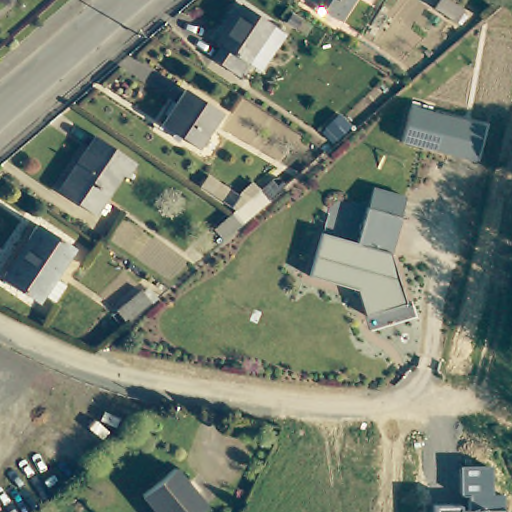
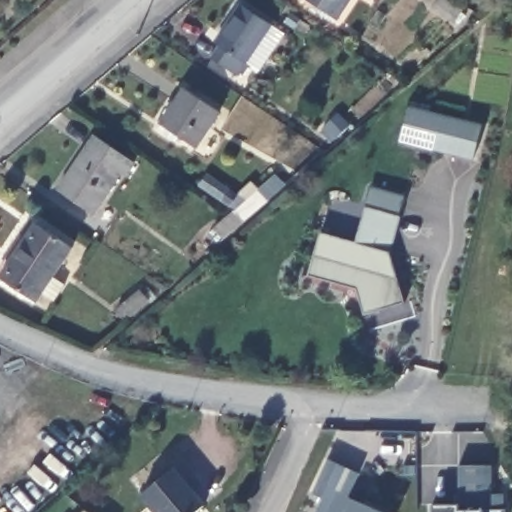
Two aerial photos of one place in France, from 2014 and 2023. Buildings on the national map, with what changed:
unchanged [(334,22),(300,0),(349,0),(334,22)]
unchanged [(427,12),(435,1),(456,15),(448,26),(427,12)]
unchanged [(210,63),(218,50),(214,47),(239,8),(268,27),(235,79),(210,63)]
unchanged [(160,130),(183,93),(219,117),(195,153),(160,130)]
unchanged [(476,122),(467,156),(394,137),(403,103),(476,122)]
unchanged [(134,166),(125,180),(121,177),(94,218),(55,193),(92,138),(134,166)]
unchanged [(360,203),(365,184),(399,193),(393,212),(383,248),(399,299),(359,311),(351,285),(303,272),(315,229),(350,239),(360,203)]
unchanged [(255,191),(264,202),(243,220),(219,240),(209,228),(230,212),(255,191)]
unchanged [(71,252),(37,306),(1,283),(35,229),(71,252)]
new [(383,512),(316,512),(322,498),(313,493),(328,459),(359,473),(350,497),(383,512)]
unchanged [(492,495),(504,494),(504,512),(458,512),(467,511),(466,500),(469,499),(469,494),(460,495),(460,466),(492,465),(492,495)]
unchanged [(172,472),(201,510),(200,512),(150,512),(139,498),(172,472)]
unchanged [(458,505),(458,512),(435,512),(434,505),(458,505)]
new [(84,512),(85,511),(86,512),(84,512)]

